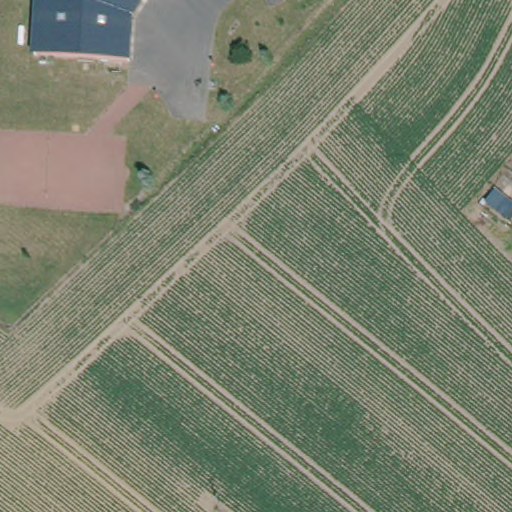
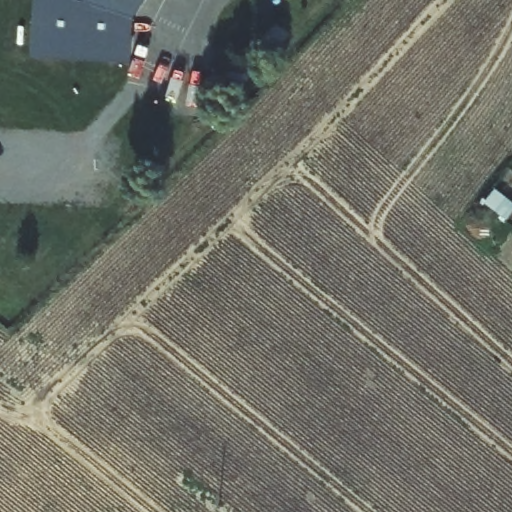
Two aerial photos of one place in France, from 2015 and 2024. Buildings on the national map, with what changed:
unchanged [(126,10),(117,65),(27,54),(35,0),(116,0),(127,8),(126,10)]
unchanged [(116,0),(133,0),(127,8),(116,0)]

